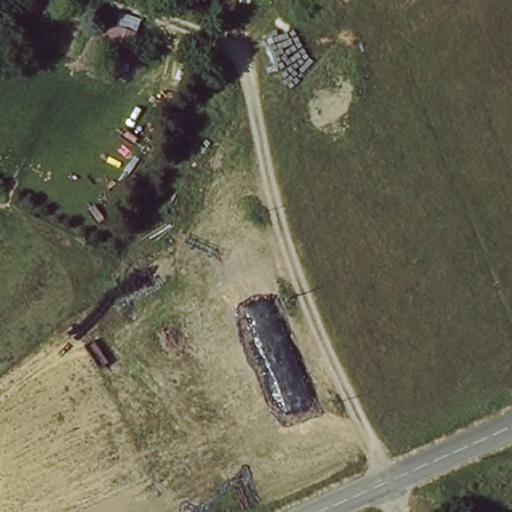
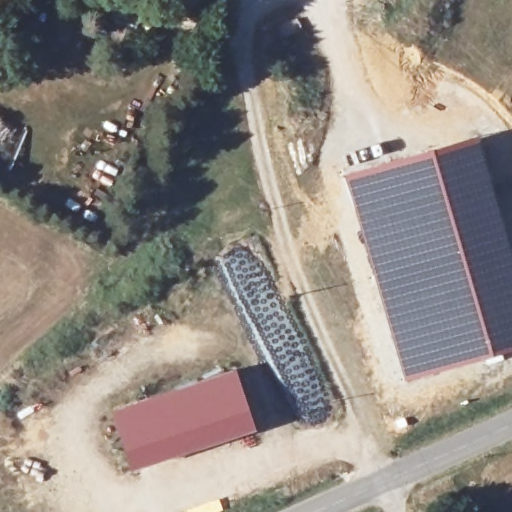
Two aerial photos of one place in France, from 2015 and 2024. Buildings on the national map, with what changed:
new [(435,147),(436,151),(480,140),(512,248),(512,347),(483,357),(427,371),(405,379),(382,303),(366,246),(342,172),(395,156),(435,147)]
unchanged [(131,469),(112,410),(235,370),(256,428),(131,469)]

